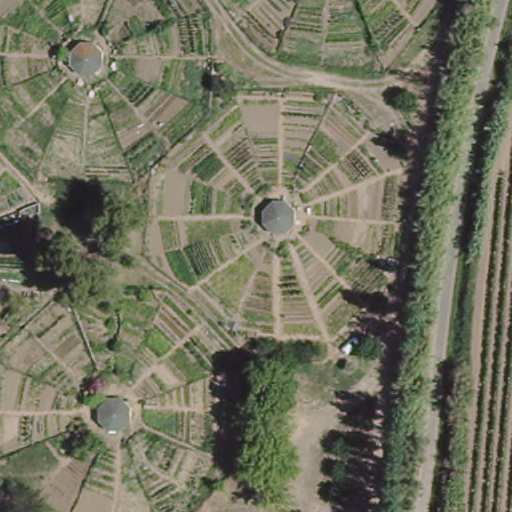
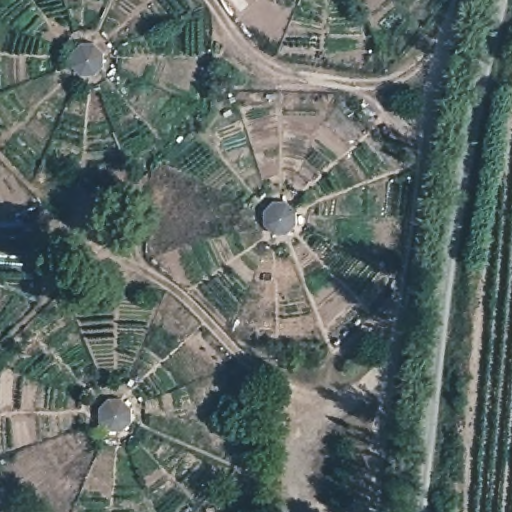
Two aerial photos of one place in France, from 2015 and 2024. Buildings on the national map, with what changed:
unchanged [(103,52),(102,68),(89,73),(75,68),(75,51),(89,43),(103,52)]
unchanged [(291,207),(291,221),(279,231),(262,225),(263,211),(280,198),(291,207)]
unchanged [(131,408),(127,422),(112,424),(104,410),(108,399),(120,397),(131,408)]

